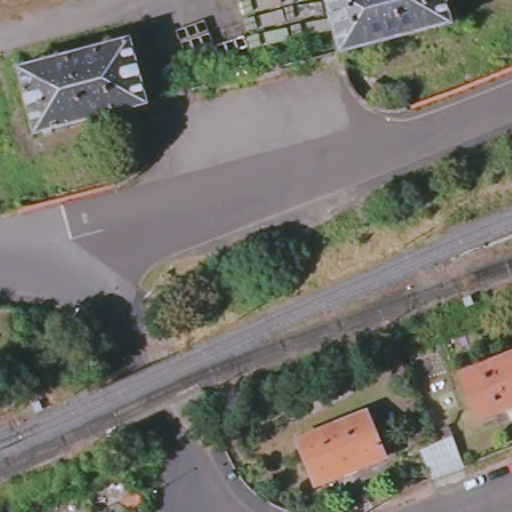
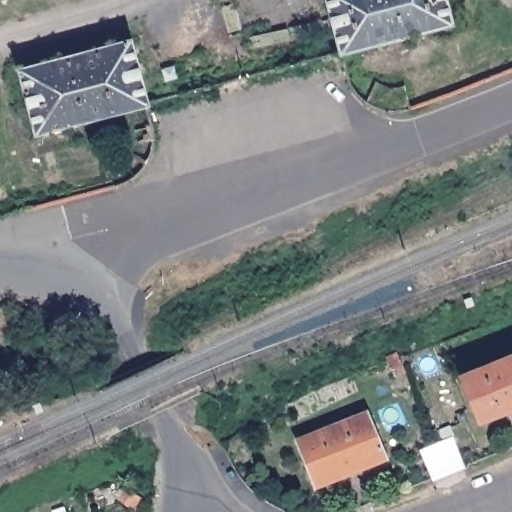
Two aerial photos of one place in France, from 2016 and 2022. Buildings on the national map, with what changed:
unchanged [(327,0),(443,0),(448,22),(340,50),(327,0)]
unchanged [(18,78),(131,48),(145,101),(32,131),(18,78)]
unchanged [(463,376),(512,357),(512,409),(482,421),(463,376)]
unchanged [(387,458),(320,486),(300,441),(370,414),(387,458)]
unchanged [(455,437),(467,467),(444,476),(435,480),(423,451),(455,437)]

